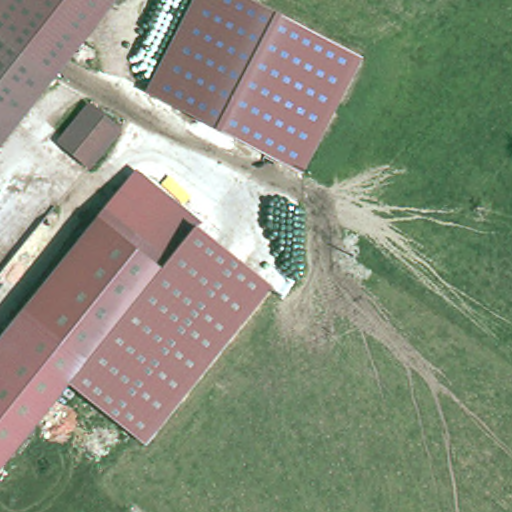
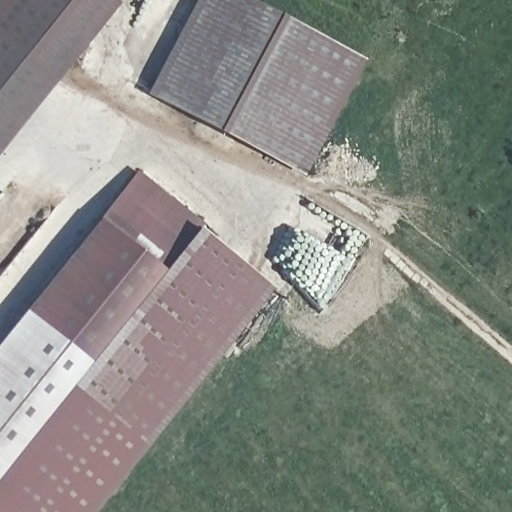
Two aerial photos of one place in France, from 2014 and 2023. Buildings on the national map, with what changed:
unchanged [(119,1),(61,80),(0,31),(0,0),(117,0),(119,1)]
unchanged [(362,58),(303,172),(145,92),(194,0),(248,0),(362,58)]
unchanged [(61,80),(39,106),(0,74),(0,31),(61,80)]
unchanged [(39,106),(0,153),(0,74),(39,106)]
unchanged [(94,106),(120,125),(90,168),(63,142),(94,106)]
unchanged [(144,173),(205,221),(0,470),(0,346),(144,173)]
unchanged [(273,290),(146,445),(72,383),(195,234),(200,229),(273,290)]
new [(0,512),(0,470),(72,383),(146,445),(94,512),(0,512)]

